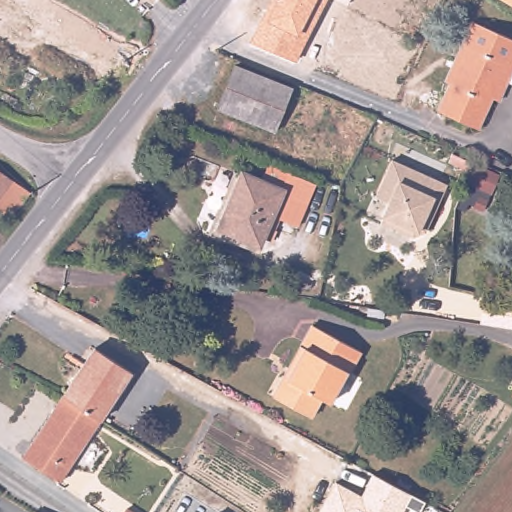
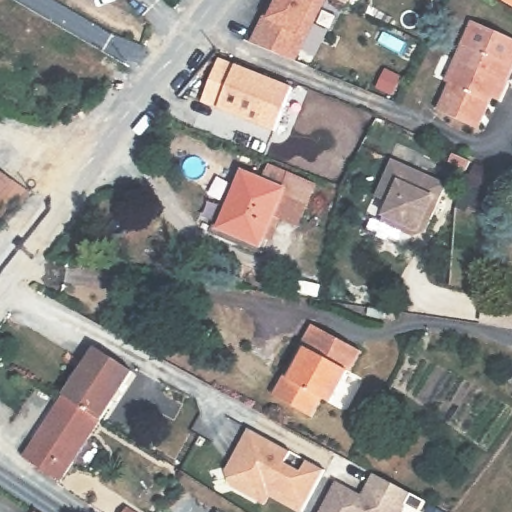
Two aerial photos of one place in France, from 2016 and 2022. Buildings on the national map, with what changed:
unchanged [(263,15),(268,18),(278,0),(327,0),(297,61),(251,42),(263,15)]
unchanged [(336,0),(351,0),(348,5),(336,0)]
new [(508,0),(512,0),(512,2),(508,0)]
unchanged [(437,111),(471,48),(467,45),(481,22),(512,39),(512,86),(502,105),(489,97),(472,129),(437,111)]
unchanged [(297,87),(277,132),(222,110),(239,63),(297,87)]
unchanged [(450,184),(427,239),(380,219),(387,201),(377,196),(393,159),(450,184)]
unchanged [(317,183),(301,225),(273,215),(282,192),(261,183),(270,163),(317,183)]
unchanged [(0,172),(33,195),(11,223),(0,215),(0,172)]
unchanged [(273,215),(261,244),(224,227),(247,177),(261,183),(282,192),(273,215)]
unchanged [(481,325),(484,300),(512,303),(512,329),(481,325)]
unchanged [(284,377),(302,345),(298,343),(310,321),(360,347),(348,370),(344,368),(327,400),(322,397),(312,415),(272,394),(281,375),(284,377)]
unchanged [(97,346),(132,368),(102,415),(65,393),(97,346)]
unchanged [(60,475),(26,453),(65,393),(102,415),(60,475)]
new [(229,466),(237,452),(233,450),(246,427),(293,452),(285,466),(300,474),(307,460),(324,469),(302,510),(272,495),(267,503),(228,482),(224,468),(229,466)]
unchanged [(427,501),(421,512),(417,512),(406,506),(403,512),(320,512),(337,481),(362,495),(374,473),(427,501)]
demolished [(99,507),(105,512),(96,512),(99,507)]
unchanged [(40,512),(37,512),(38,511),(40,512)]

